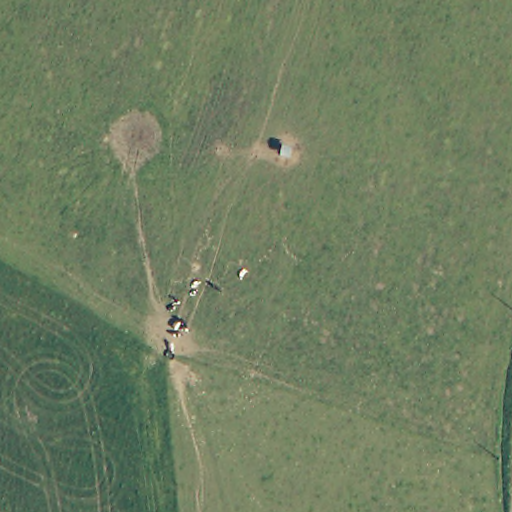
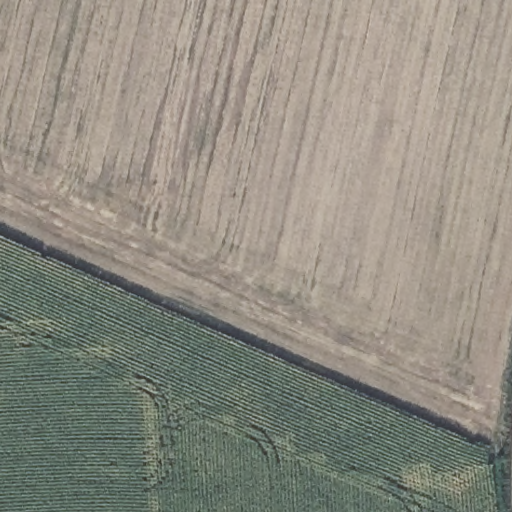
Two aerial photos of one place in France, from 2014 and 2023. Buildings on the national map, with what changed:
[]

